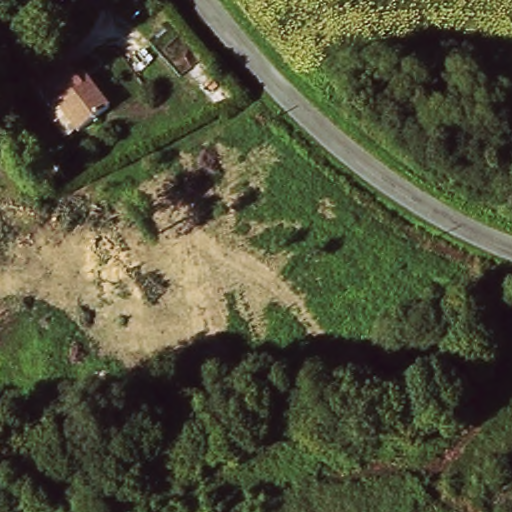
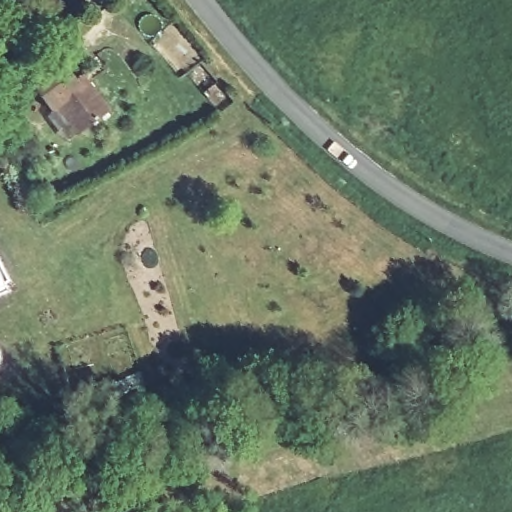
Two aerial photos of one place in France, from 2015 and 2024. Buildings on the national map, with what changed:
unchanged [(88,132),(68,104),(59,109),(36,79),(68,54),(80,74),(89,70),(99,83),(118,109),(88,132)]

